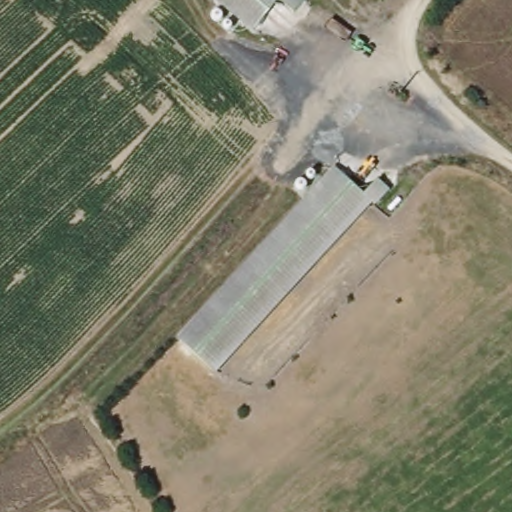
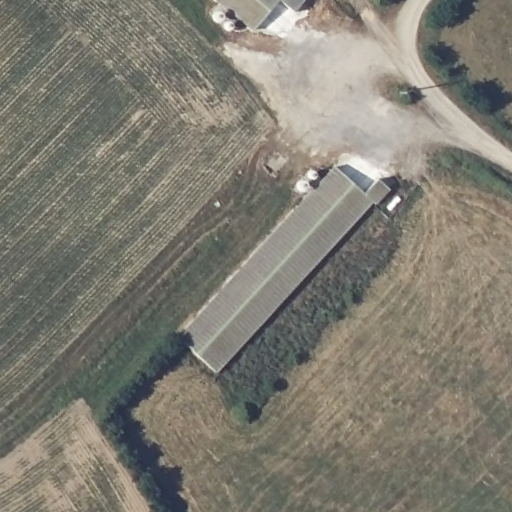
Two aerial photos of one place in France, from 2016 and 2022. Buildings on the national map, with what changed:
unchanged [(217,0),(277,0),(252,30),(217,0)]
unchanged [(305,1),(296,11),(284,0),(304,0),(305,1)]
unchanged [(177,337),(334,167),(365,195),(381,177),(392,188),(377,205),(374,202),(216,373),(177,337)]

